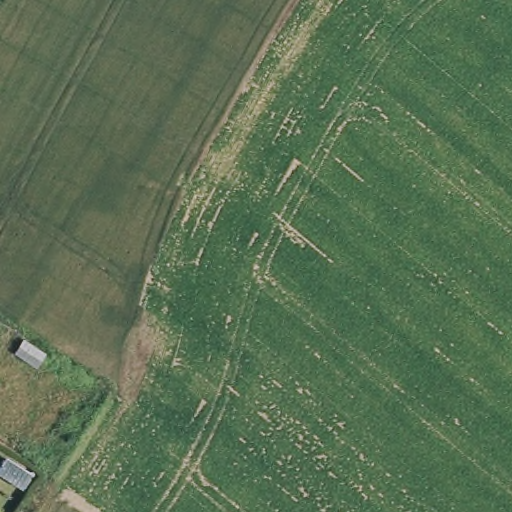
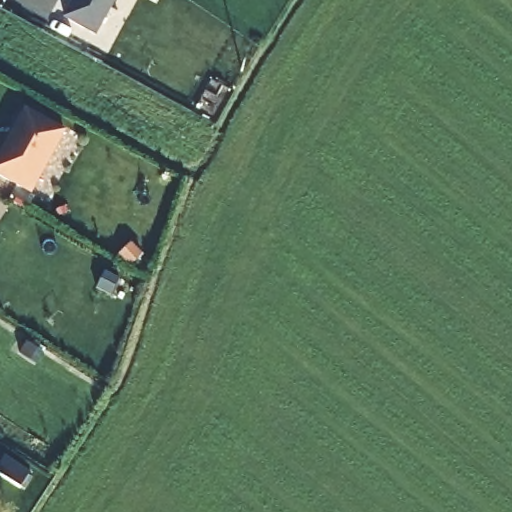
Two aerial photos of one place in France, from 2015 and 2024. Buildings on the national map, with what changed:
new [(63,19),(74,0),(116,0),(95,36),(63,19)]
new [(10,137),(9,136),(23,111),(63,134),(28,195),(0,178),(0,156),(10,137)]
new [(128,249),(138,260),(127,270),(118,260),(128,249)]
new [(118,279),(109,296),(95,288),(104,272),(118,279)]
new [(36,350),(30,361),(19,354),(26,343),(36,350)]
unchanged [(29,481),(20,493),(0,480),(0,470),(4,464),(29,481)]

